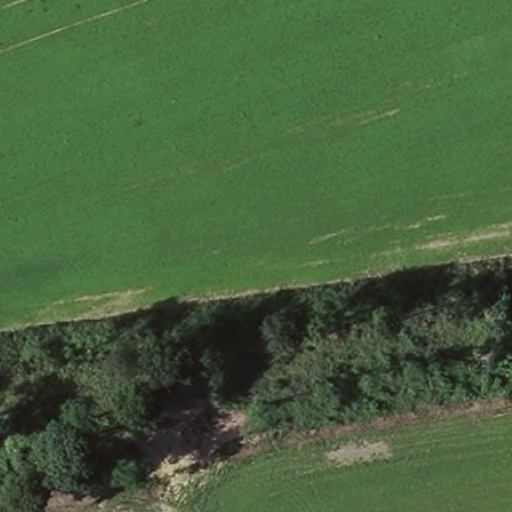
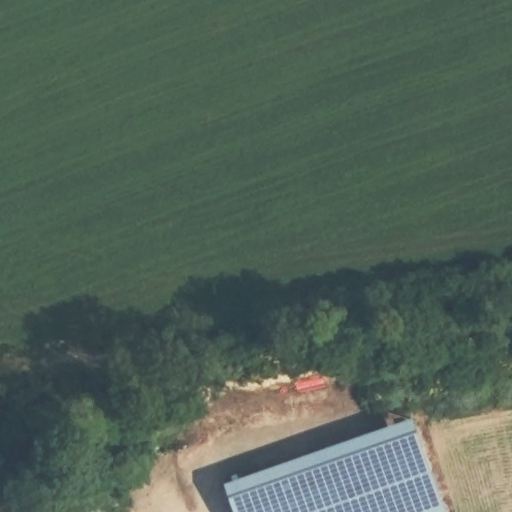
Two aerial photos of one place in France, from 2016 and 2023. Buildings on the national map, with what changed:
new [(446,512),(234,512),(225,485),(414,418),(446,512)]

